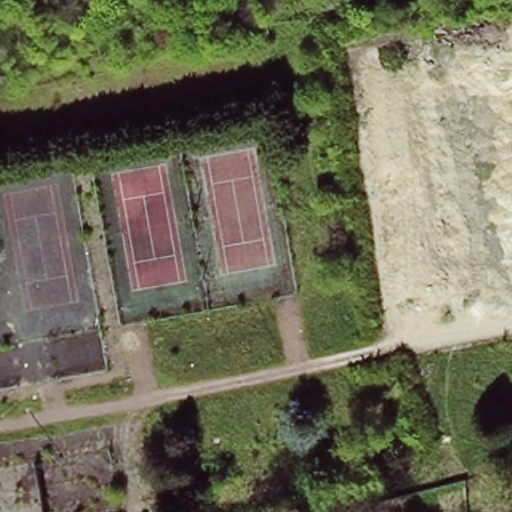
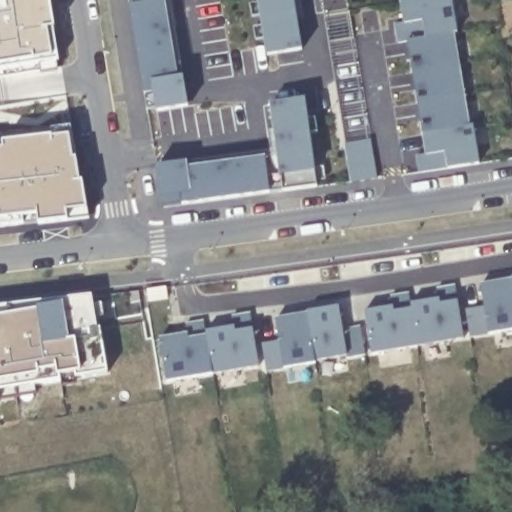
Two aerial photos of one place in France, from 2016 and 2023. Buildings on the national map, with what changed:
new [(49,0),(60,66),(0,76),(0,0),(49,0)]
new [(177,80),(184,79),(187,108),(156,111),(155,109),(147,111),(143,94),(129,6),(128,0),(163,0),(163,1),(177,80)]
new [(297,22),(302,51),(266,56),(257,0),(299,0),(303,23),(297,22)]
new [(418,173),(415,155),(425,151),(407,41),(397,44),(393,24),(403,21),(400,3),(417,0),(451,0),(457,34),(452,34),(467,126),(472,125),(478,164),(446,169),(418,173)]
new [(312,173),(316,187),(269,191),(268,194),(162,207),(155,167),(187,161),(187,168),(265,158),(272,158),(268,131),(273,129),(269,105),(305,100),(315,172),(312,173)]
new [(471,337),(466,308),(483,304),(478,284),(512,278),(512,330),(488,334),(471,337)]
new [(372,354),(364,311),(392,306),(390,295),(408,292),(410,304),(439,299),(436,288),(455,285),(457,301),(462,338),(372,354)]
new [(60,301),(60,299),(93,296),(97,328),(102,328),(108,373),(0,390),(0,308),(60,301)]
new [(347,357),(283,368),(266,372),(260,344),(279,339),(275,318),(340,307),(343,329),(360,326),(365,356),(347,357)]
new [(213,374),(165,382),(158,337),(187,333),(185,322),(205,319),(205,331),(235,326),(230,315),(250,313),(252,329),(258,366),(213,374)]

